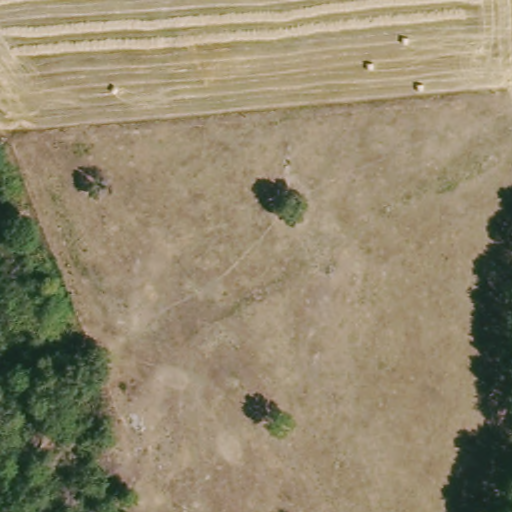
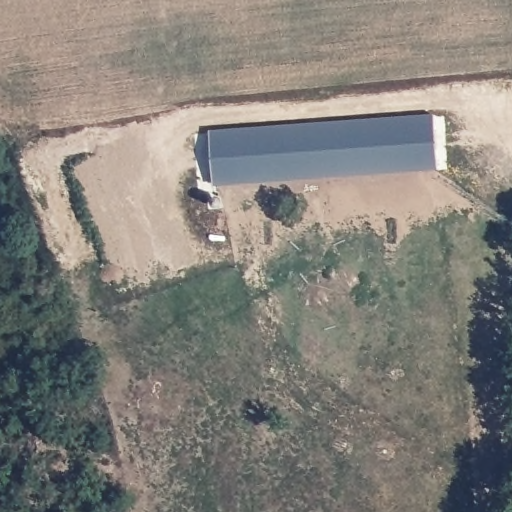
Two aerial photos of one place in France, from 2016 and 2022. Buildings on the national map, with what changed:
new [(209,135),(435,118),(438,163),(213,180),(209,135)]

